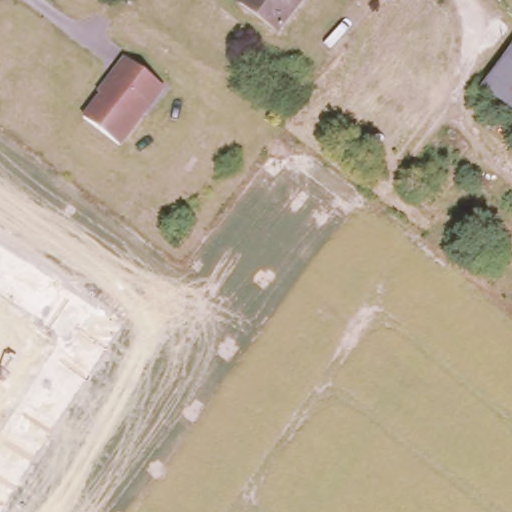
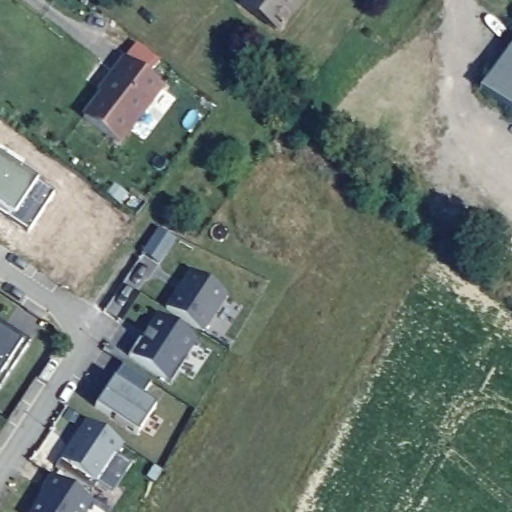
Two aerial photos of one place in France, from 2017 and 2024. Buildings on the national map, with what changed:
unchanged [(273,27),(240,1),(240,0),(295,0),(273,27)]
unchanged [(486,78),(512,44),(512,98),(486,78)]
unchanged [(125,55),(165,83),(126,143),(84,113),(125,55)]
new [(0,158),(36,183),(13,218),(0,209),(0,158)]
new [(174,240),(160,263),(145,253),(159,231),(174,240)]
new [(225,295),(201,333),(164,309),(189,272),(225,295)]
new [(196,341),(185,359),(187,361),(172,384),(130,357),(140,341),(143,342),(160,317),(196,341)]
new [(0,389),(0,325),(29,343),(0,389)]
new [(149,384),(140,397),(155,407),(136,436),(95,408),(123,367),(149,384)]
new [(123,446),(97,486),(61,463),(87,423),(123,446)]
new [(87,512),(34,512),(46,494),(42,491),(51,477),(92,504),(87,512)]

